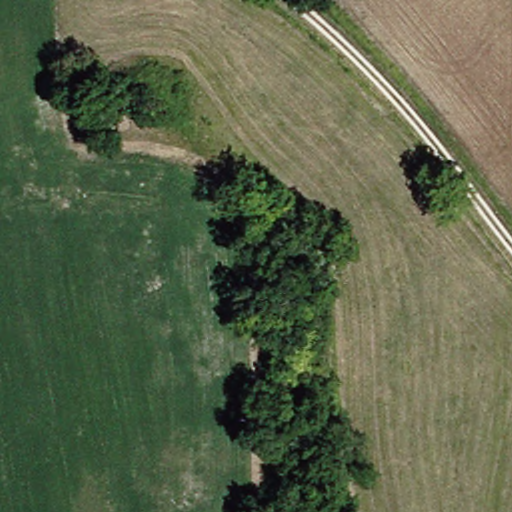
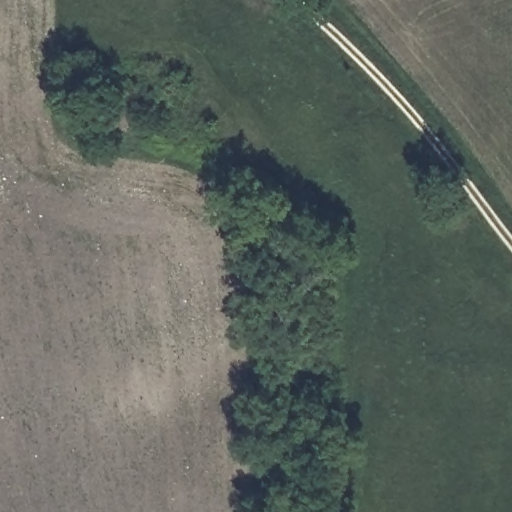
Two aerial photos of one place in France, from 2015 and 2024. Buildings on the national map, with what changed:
unchanged [(100,142),(92,109),(120,103),(125,109),(140,107),(142,129),(129,127),(127,136),(100,142)]

